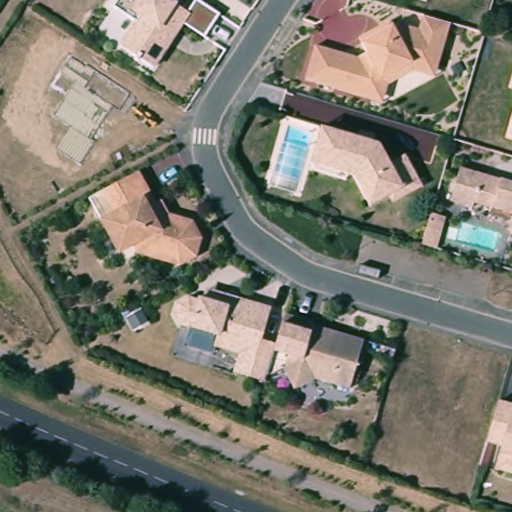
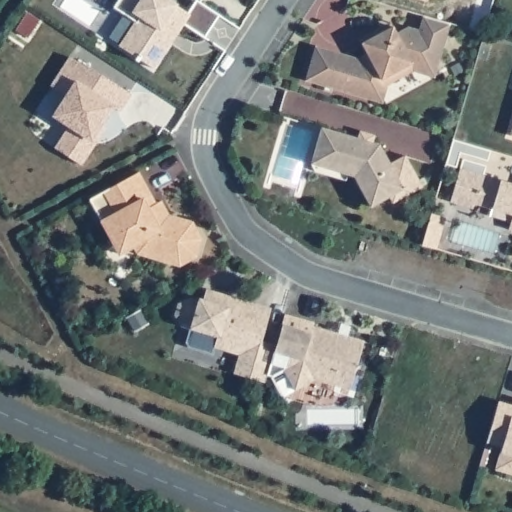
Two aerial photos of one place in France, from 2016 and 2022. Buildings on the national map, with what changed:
unchanged [(175,2),(174,5),(187,12),(195,0),(203,0),(219,13),(201,38),(182,23),(152,67),(118,46),(134,22),(111,5),(115,0),(171,0),(175,2)]
unchanged [(411,68),(388,81),(382,99),(306,78),(316,42),(368,59),(358,39),(390,23),(396,31),(406,24),(420,27),(424,13),(449,20),(434,74),(411,68)]
new [(96,141),(81,164),(56,148),(70,126),(54,115),(67,95),(52,86),(61,72),(71,56),(86,66),(87,64),(131,93),(119,110),(113,106),(101,124),(105,127),(96,141)]
unchanged [(512,125),(512,136),(509,135),(512,125)]
unchanged [(380,144),(387,162),(404,153),(421,187),(397,201),(392,193),(367,207),(352,180),(310,167),(319,126),(380,144)]
unchanged [(134,172),(147,165),(169,212),(152,220),(157,233),(132,246),(115,254),(84,197),(134,172)]
unchanged [(512,227),(484,219),(487,211),(446,201),(455,167),(512,184),(512,227)]
unchanged [(191,221),(199,238),(193,257),(173,266),(135,253),(132,246),(157,233),(153,223),(152,220),(169,212),(191,221)]
unchanged [(267,309),(260,339),(271,342),(281,316),(315,325),(306,363),(285,357),(274,353),(265,385),(230,372),(235,354),(185,338),(188,326),(184,325),(176,320),(172,314),(173,303),(183,299),(196,297),(202,288),(267,309)]
unchanged [(362,337),(350,388),(310,378),(295,388),(282,368),(285,357),(306,363),(315,325),(362,337)]
unchanged [(512,474),(492,467),(497,448),(484,443),(497,401),(512,404),(512,474)]

